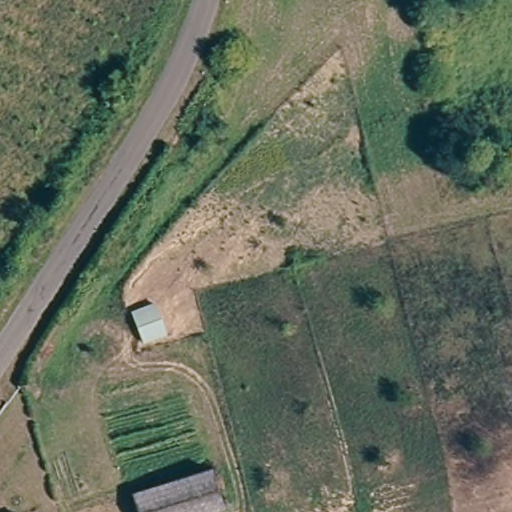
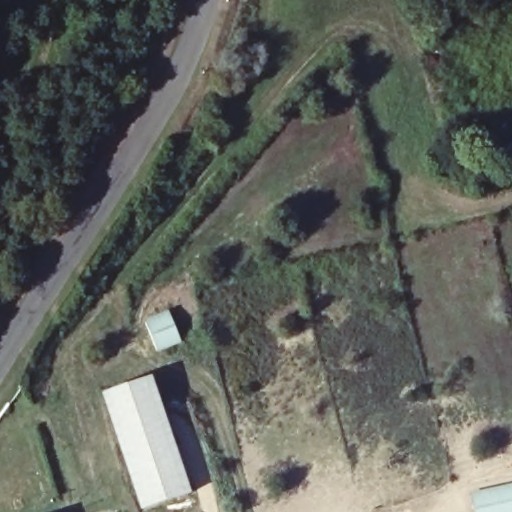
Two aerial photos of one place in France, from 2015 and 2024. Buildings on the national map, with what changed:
unchanged [(186,344),(159,354),(147,318),(172,310),(186,344)]
new [(192,491),(143,510),(101,392),(153,375),(192,491)]
demolished [(213,512),(138,512),(131,491),(210,466),(226,507),(213,512)]

